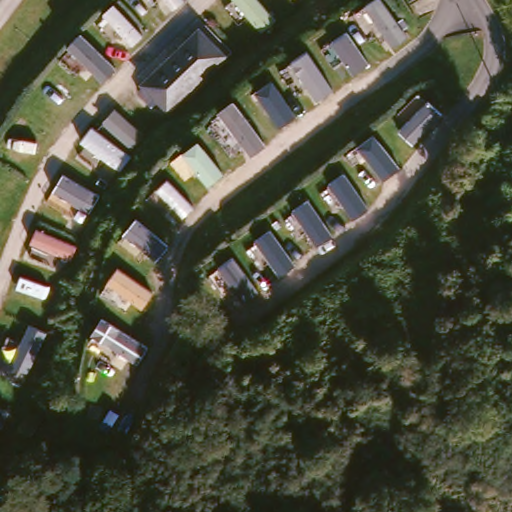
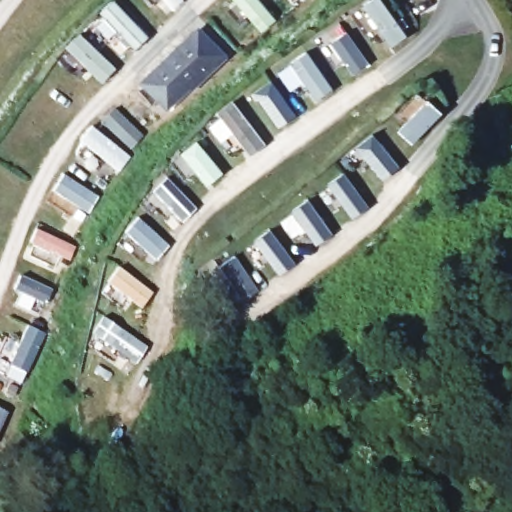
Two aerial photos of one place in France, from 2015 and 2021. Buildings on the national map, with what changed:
unchanged [(219,53),(165,106),(141,81),(194,28),(219,53)]

